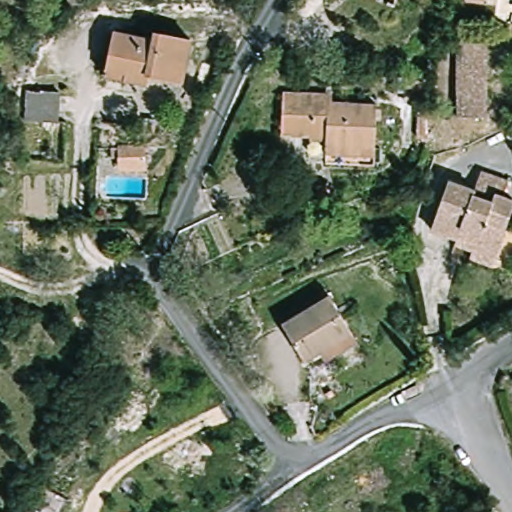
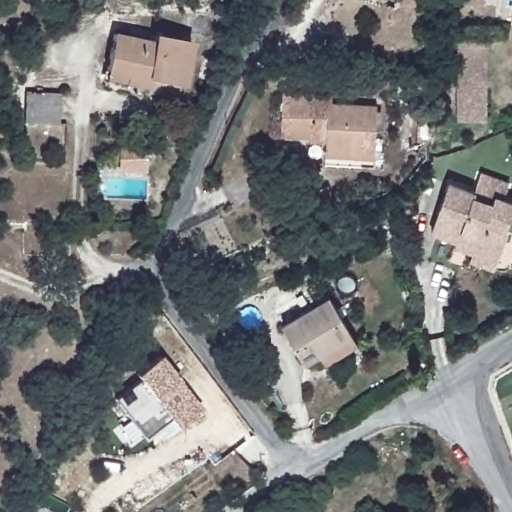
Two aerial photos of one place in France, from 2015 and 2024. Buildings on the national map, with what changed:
unchanged [(144,82),(105,74),(115,32),(154,41),(156,32),(192,41),(181,84),(147,76),(144,82)]
unchanged [(465,119),(455,41),(480,39),(489,116),(465,119)]
unchanged [(420,87),(394,86),(395,71),(420,72),(420,87)]
unchanged [(60,83),(62,129),(27,127),(26,81),(60,83)]
unchanged [(282,137),(284,94),(331,97),(331,106),(374,108),(373,150),(327,147),(328,139),(310,138),(282,137)]
unchanged [(460,229),(456,235),(442,231),(438,246),(415,241),(431,195),(435,196),(446,201),(453,176),(479,183),(481,176),(501,183),(512,186),(512,222),(512,240),(510,244),(506,260),(483,252),(487,237),(460,229)]
unchanged [(131,205),(89,202),(90,182),(132,184),(131,205)]
unchanged [(335,298),(354,333),(307,359),(288,324),(335,298)]
new [(202,415),(176,432),(169,422),(142,439),(115,401),(141,383),(137,377),(162,359),(202,415)]

